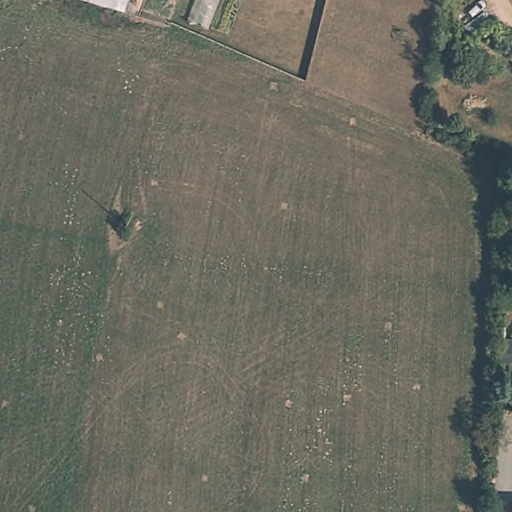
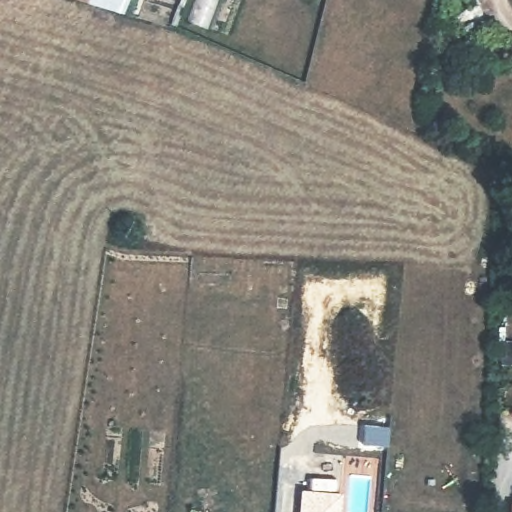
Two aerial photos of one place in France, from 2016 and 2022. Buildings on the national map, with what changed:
unchanged [(126,15),(79,0),(130,0),(126,15)]
new [(341,494),(340,512),(303,512),(304,491),(341,494)]
unchanged [(512,501),(512,512),(509,512),(512,500),(512,501)]

